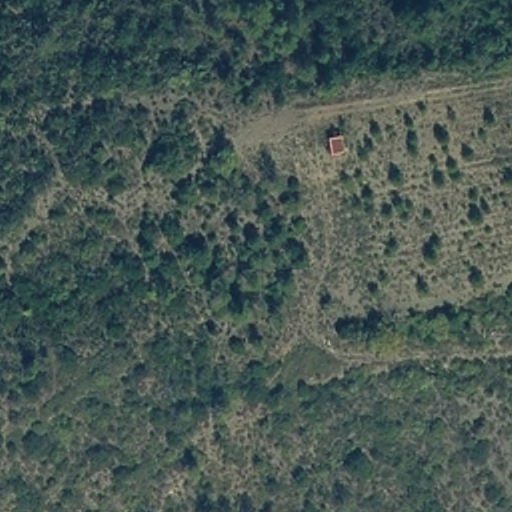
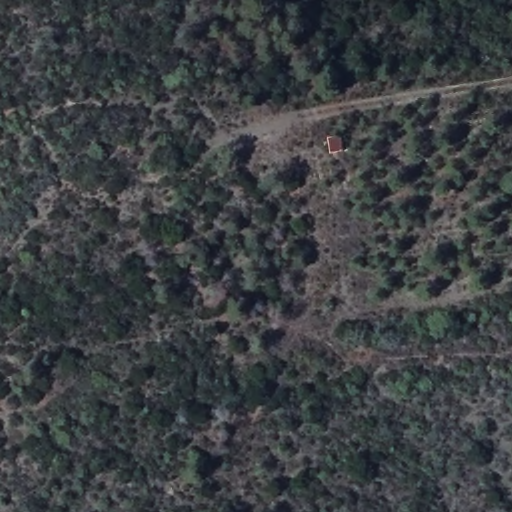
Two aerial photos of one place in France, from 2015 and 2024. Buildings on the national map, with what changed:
unchanged [(325,139),(341,136),(344,150),(328,154),(325,139)]

